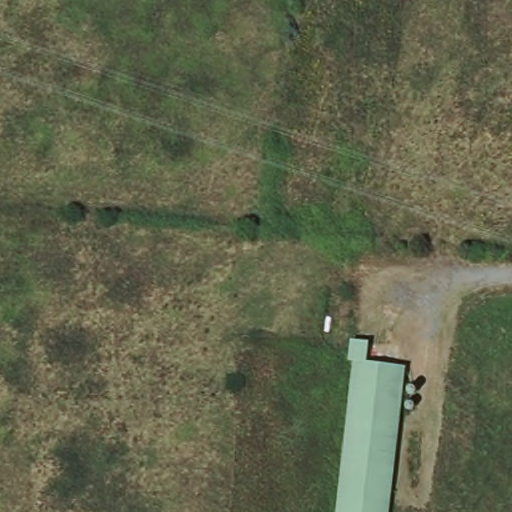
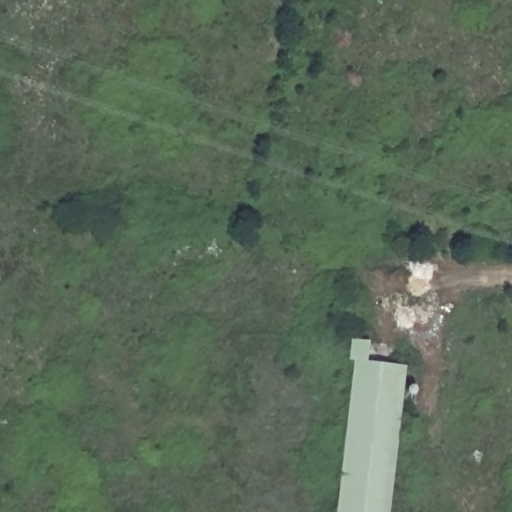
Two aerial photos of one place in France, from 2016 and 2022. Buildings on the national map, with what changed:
unchanged [(352,350),(374,352),(373,369),(408,372),(394,512),(336,512),(352,350)]

